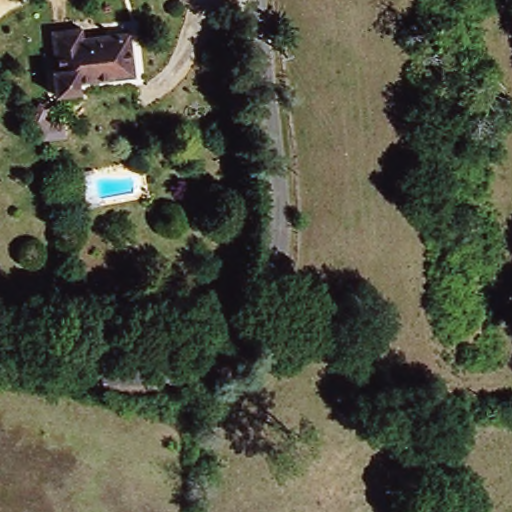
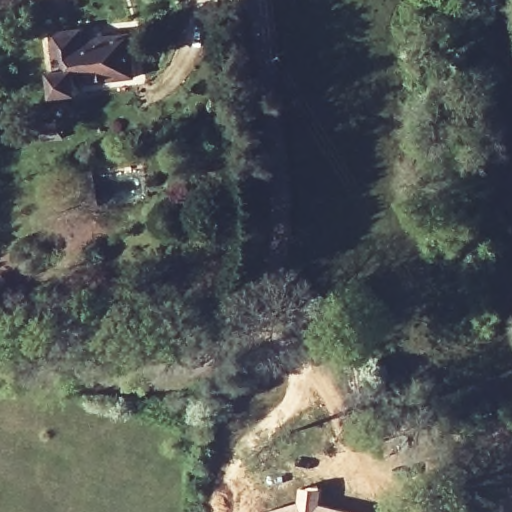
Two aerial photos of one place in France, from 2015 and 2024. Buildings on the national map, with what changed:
unchanged [(52,72),(57,72),(52,32),(74,30),(77,41),(129,36),(134,77),(80,84),(81,94),(56,97),(52,72)]
new [(303,502),(304,487),(323,489),(322,505),(355,512),(268,512),(303,502)]

